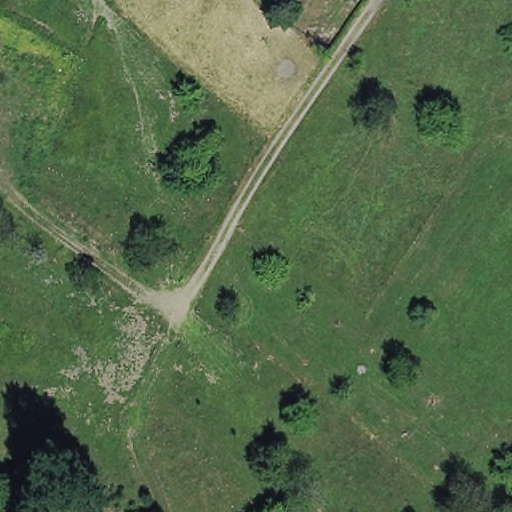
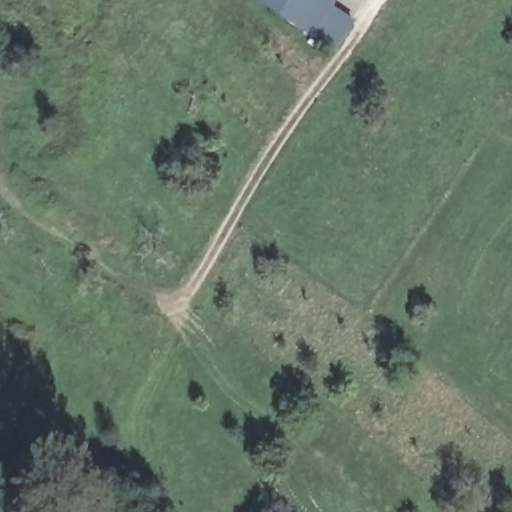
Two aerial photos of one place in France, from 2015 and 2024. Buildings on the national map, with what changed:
new [(333,53),(258,0),(332,0),(337,3),(333,7),(354,25),(333,53)]

